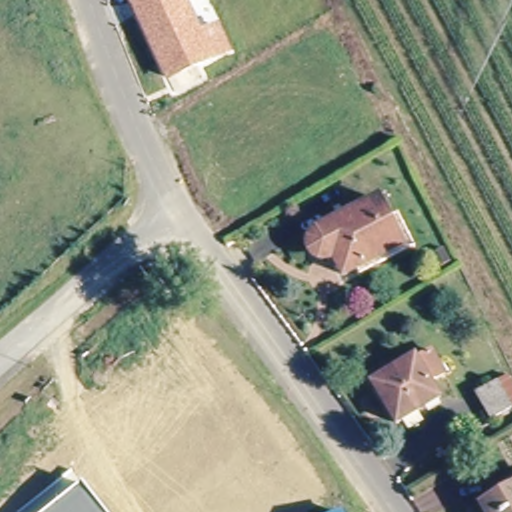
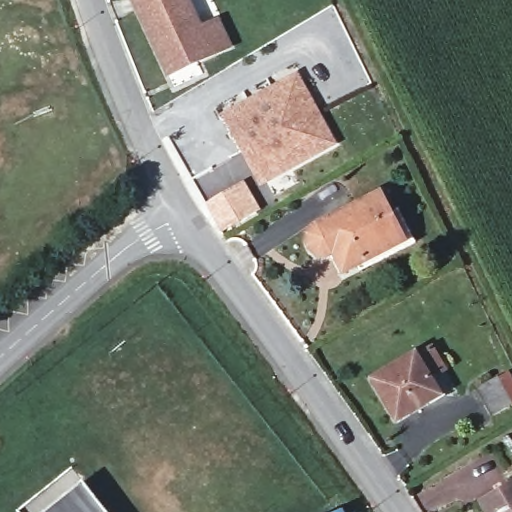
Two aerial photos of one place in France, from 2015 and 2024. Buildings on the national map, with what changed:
unchanged [(211,19),(223,44),(162,71),(129,0),(182,0),(194,26),(211,19)]
new [(260,186),(222,114),(299,72),(338,144),(260,186)]
new [(219,235),(201,204),(246,179),(261,209),(219,235)]
unchanged [(399,236),(344,265),(341,257),(328,264),(318,244),(311,247),(303,247),(296,240),(294,230),(299,221),(363,188),(373,208),(383,203),(399,236)]
unchanged [(367,378),(430,340),(449,369),(433,382),(443,399),(396,427),(367,378)]
unchanged [(473,388),(497,376),(507,369),(512,378),(512,399),(511,400),(512,401),(512,402),(489,414),(473,388)]
unchanged [(82,482),(106,512),(44,512),(82,482)]
unchanged [(482,502),(512,484),(512,512),(488,512),(482,502)]

